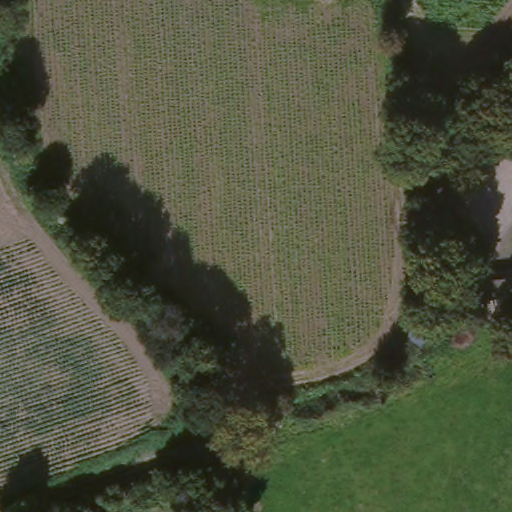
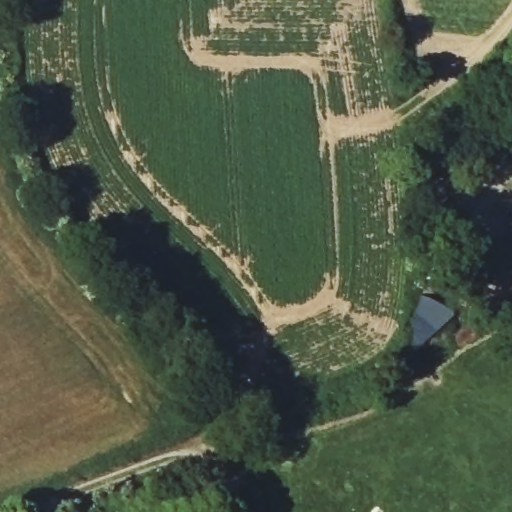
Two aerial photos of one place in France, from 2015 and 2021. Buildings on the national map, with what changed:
unchanged [(512,286),(512,304),(464,310),(461,292),(512,286)]
new [(420,300),(438,301),(453,313),(409,351),(407,350),(420,300)]

